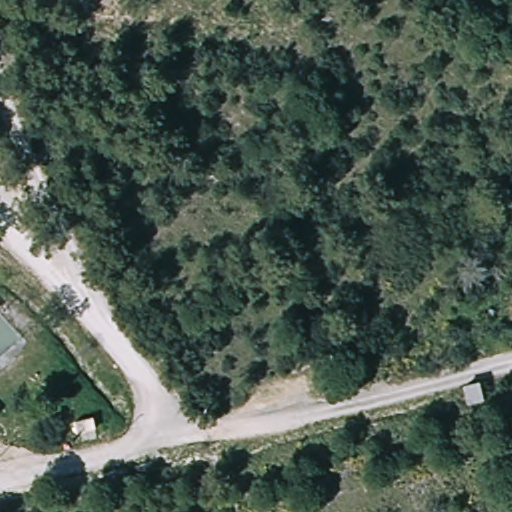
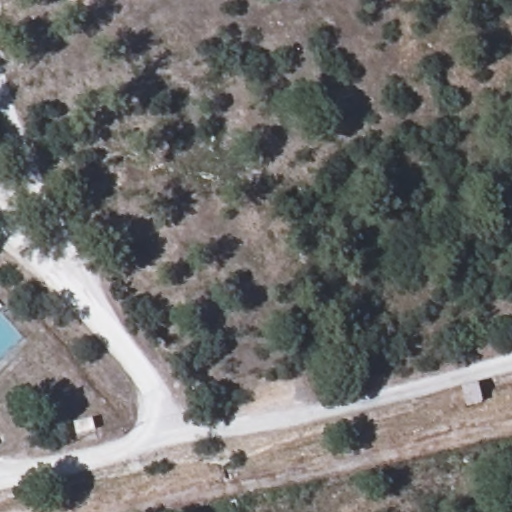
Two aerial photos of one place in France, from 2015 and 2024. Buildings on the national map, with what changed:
[]

